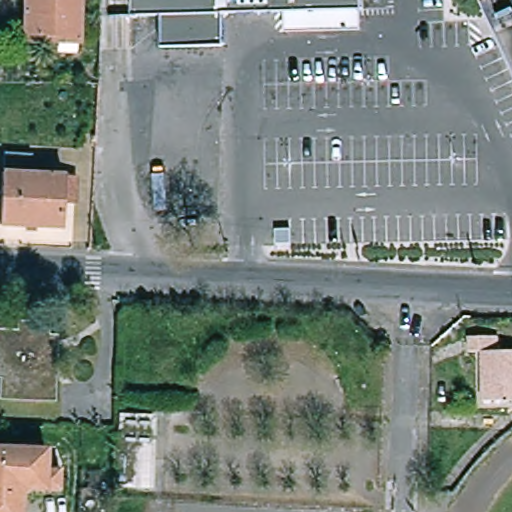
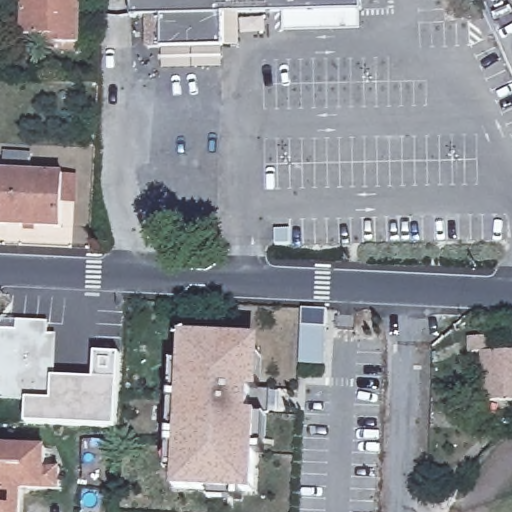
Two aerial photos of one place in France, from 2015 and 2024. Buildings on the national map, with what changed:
unchanged [(46,43),(23,41),(23,34),(25,0),(80,0),(78,45),(77,54),(46,53),(46,43)]
unchanged [(375,16),(361,16),(315,18),(314,9),(222,11),(223,44),(161,46),(160,14),(130,14),(130,0),(374,0),(374,7),(375,16)]
unchanged [(4,153),(28,154),(27,169),(3,168),(4,153)]
unchanged [(0,211),(3,173),(63,176),(76,177),(74,207),(61,206),(60,230),(0,226),(0,211)]
unchanged [(291,229),(291,245),(276,245),(275,229),(291,229)]
new [(326,364),(301,364),(303,308),(327,308),(326,364)]
unchanged [(4,376),(0,376),(0,329),(20,330),(20,321),(49,323),(47,356),(52,356),(51,377),(56,377),(54,399),(3,396),(4,376)]
new [(250,379),(261,379),(261,402),(257,402),(256,443),(247,443),(245,482),(166,479),(174,324),(253,327),(250,379)]
unchanged [(490,403),(487,354),(470,354),(470,339),(499,339),(500,353),(512,352),(512,401),(490,403)]
new [(167,453),(158,452),(163,351),(173,352),(167,453)]
new [(118,428),(27,424),(28,397),(54,399),(56,377),(95,379),(96,354),(121,356),(118,428)]
demolished [(151,416),(148,486),(117,484),(121,414),(151,416)]
unchanged [(43,468),(59,469),(58,491),(21,489),(19,512),(0,512),(0,446),(44,448),(43,468)]
new [(235,484),(235,492),(199,491),(200,482),(235,484)]

